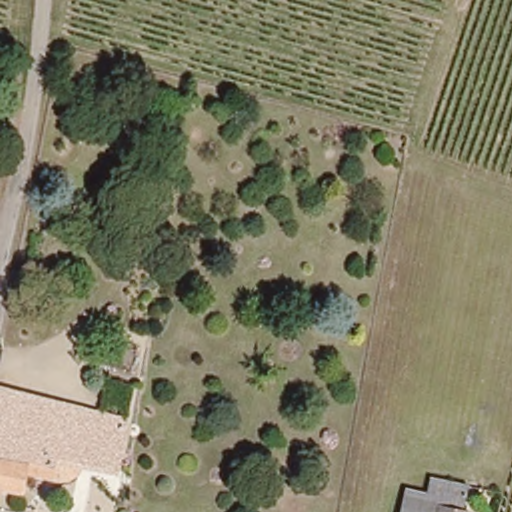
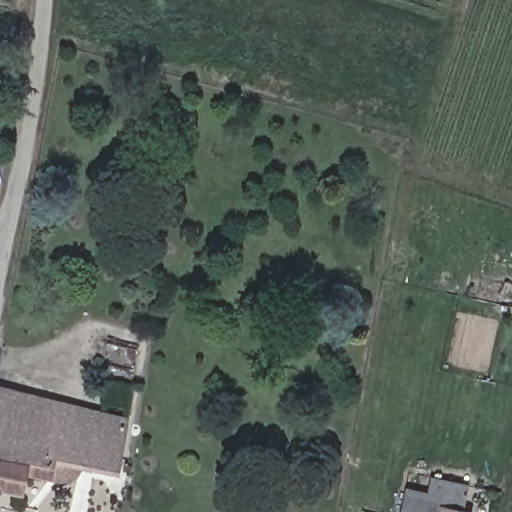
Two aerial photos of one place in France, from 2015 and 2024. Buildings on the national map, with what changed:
unchanged [(68,465),(63,487),(19,478),(15,496),(0,493),(0,390),(120,415),(106,473),(68,465)]
unchanged [(450,507),(474,512),(407,512),(412,488),(452,497),(450,507)]

